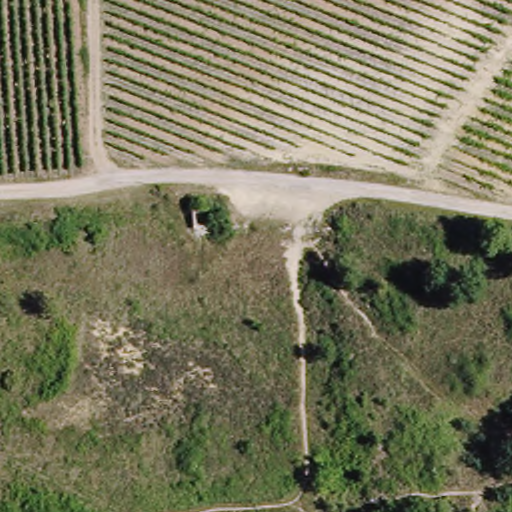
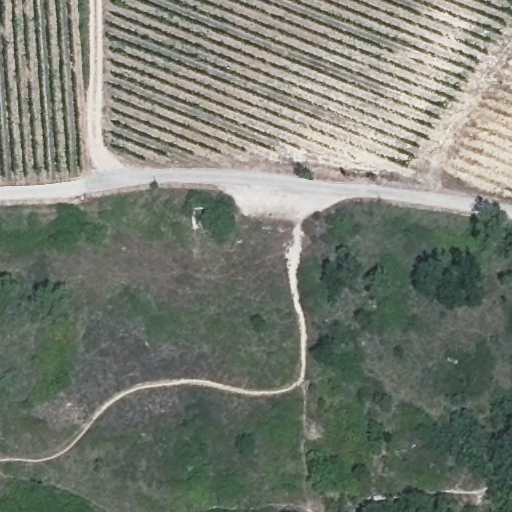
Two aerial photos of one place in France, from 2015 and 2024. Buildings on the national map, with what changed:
unchanged [(210,210),(221,209),(219,233),(194,232),(196,211),(210,210)]

